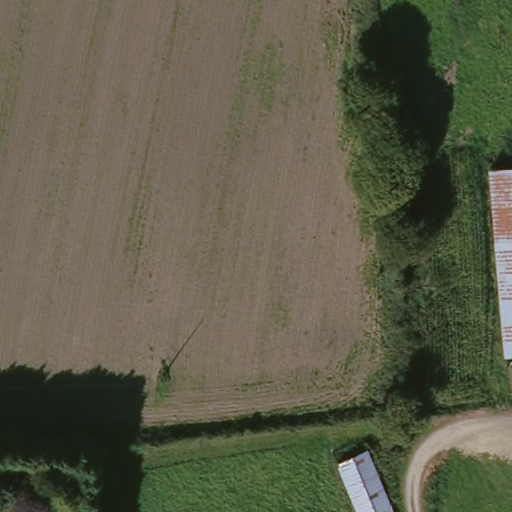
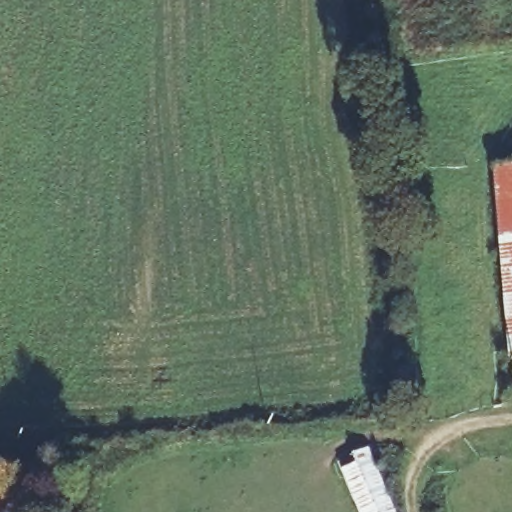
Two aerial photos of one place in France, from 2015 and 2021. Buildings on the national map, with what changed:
unchanged [(488,169),(512,166),(512,361),(506,361),(488,169)]
unchanged [(339,467),(366,454),(393,512),(358,512),(339,467)]

